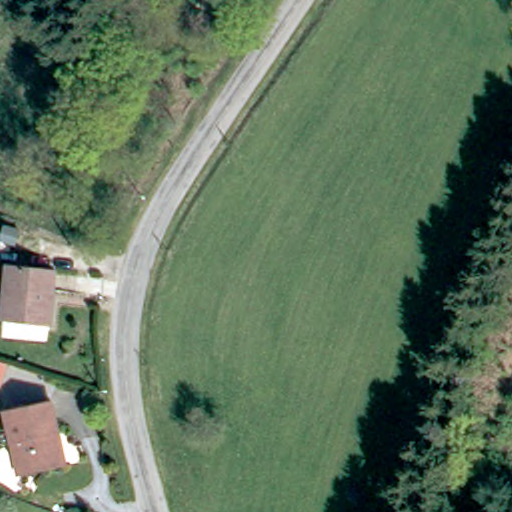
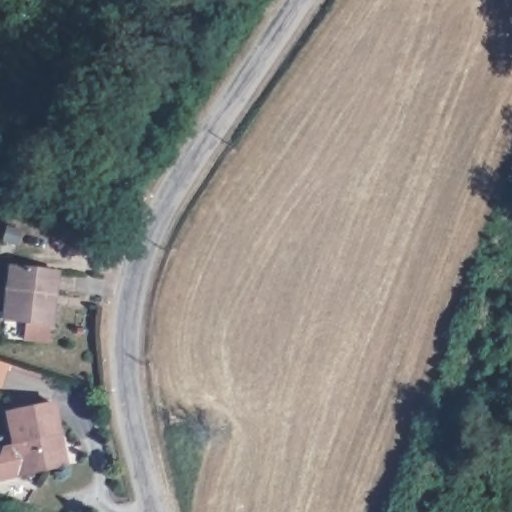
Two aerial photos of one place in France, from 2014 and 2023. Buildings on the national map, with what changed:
unchanged [(45,323),(0,319),(5,270),(50,274),(45,323)]
unchanged [(2,388),(0,388),(0,362),(9,365),(2,388)]
unchanged [(54,466),(15,471),(7,408),(45,405),(54,466)]

